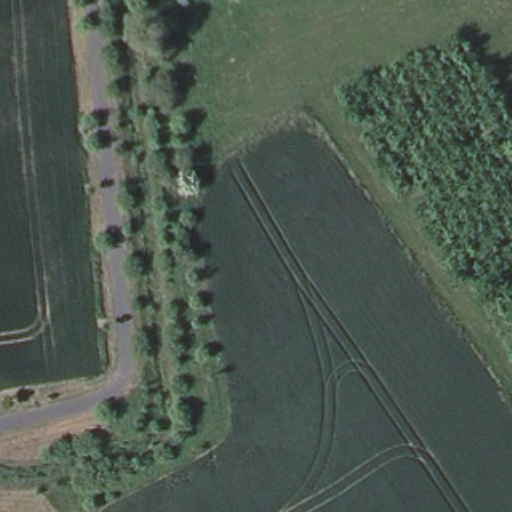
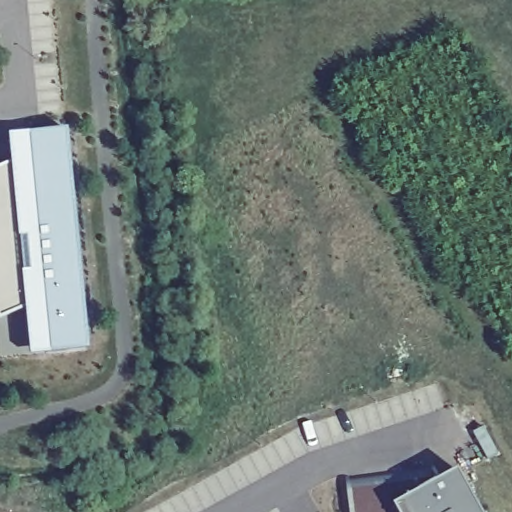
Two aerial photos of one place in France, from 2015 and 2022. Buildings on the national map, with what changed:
new [(5,134),(62,129),(83,348),(27,352),(22,303),(0,314),(0,167),(8,164),(5,134)]
new [(348,489),(425,478),(425,477),(428,476),(438,496),(457,486),(472,512),(353,512),(352,493),(341,494),(340,489),(348,488),(348,489)]
new [(353,512),(342,512),(341,494),(352,493),(353,512)]

